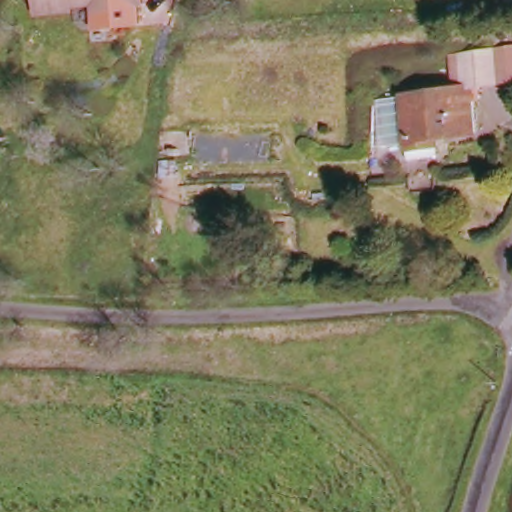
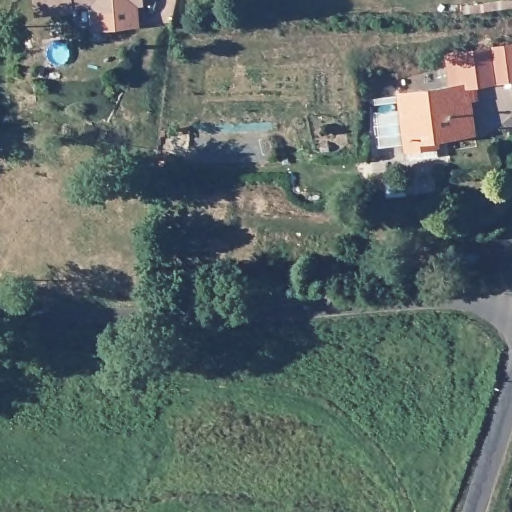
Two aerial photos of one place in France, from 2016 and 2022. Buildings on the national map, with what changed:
unchanged [(90,8),(73,9),(74,14),(35,17),(34,0),(143,0),(143,6),(138,7),(141,28),(93,31),(90,8)]
unchanged [(476,104),(469,104),(473,134),(439,139),(439,159),(407,163),(398,98),(467,88),(464,57),(490,54),(512,50),(512,84),(494,86),(474,89),(476,104)]

